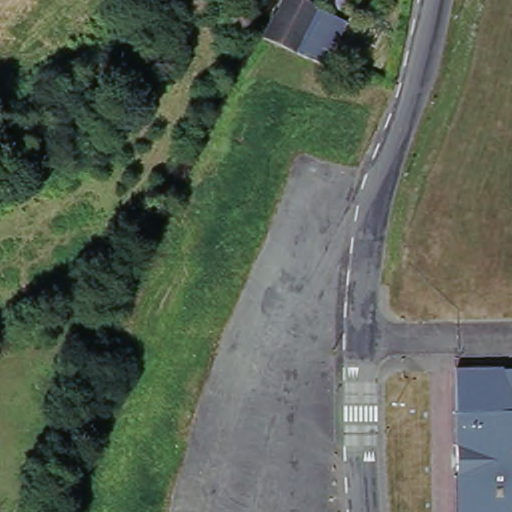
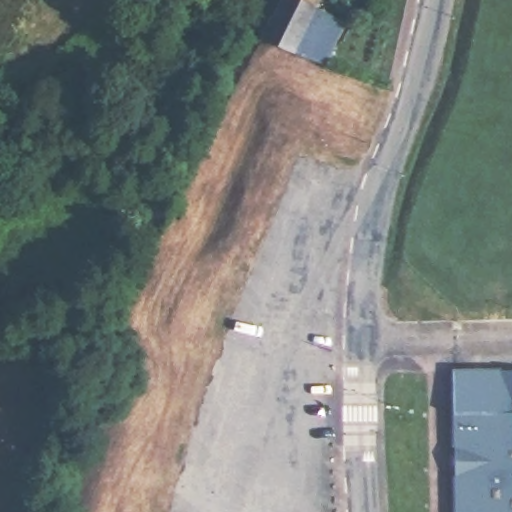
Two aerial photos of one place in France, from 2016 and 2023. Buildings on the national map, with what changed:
unchanged [(280,6),(283,0),(299,0),(349,23),(329,67),(306,59),(262,38),(271,24),(280,6)]
unchanged [(453,371),(472,370),(477,377),(484,370),(503,370),(512,370),(512,512),(457,512),(453,371)]

